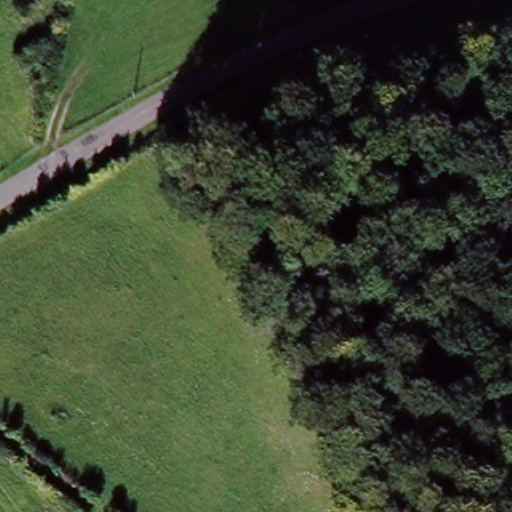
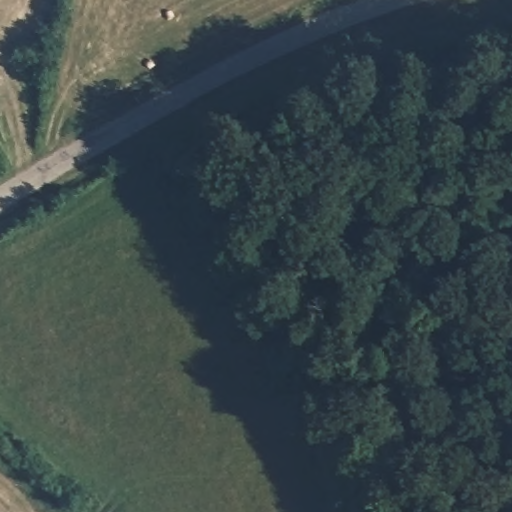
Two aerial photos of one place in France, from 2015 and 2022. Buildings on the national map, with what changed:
[]

